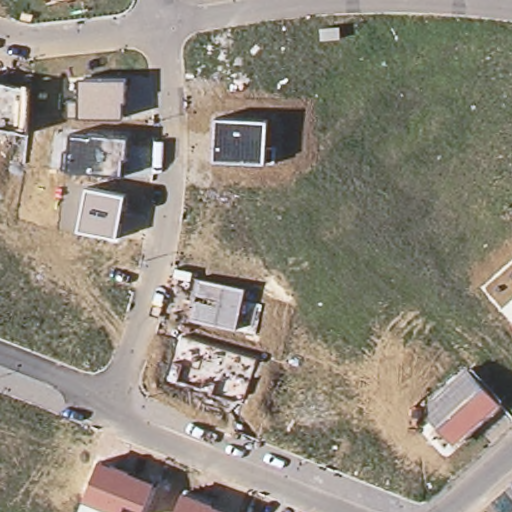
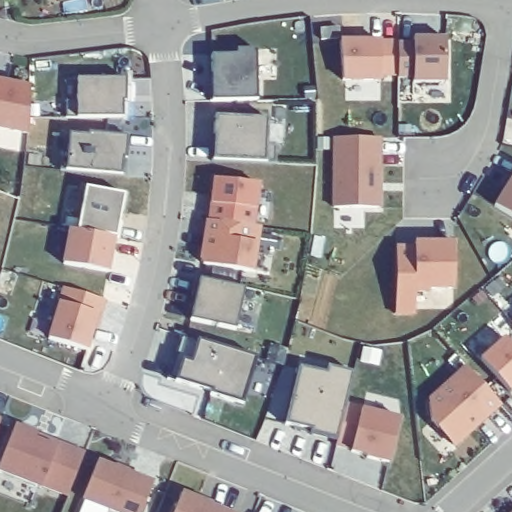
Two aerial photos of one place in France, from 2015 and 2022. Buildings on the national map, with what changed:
new [(412,82),(412,79),(380,77),(380,82),(342,82),(340,39),(380,41),(399,42),(414,44),(414,38),(445,39),(445,83),(412,82)]
new [(216,51),(230,52),(232,44),(252,45),(252,97),(215,97),(216,51)]
unchanged [(127,79),(126,102),(122,102),(122,116),(78,117),(78,78),(127,79)]
unchanged [(29,135),(0,129),(0,81),(29,86),(29,135)]
unchanged [(268,119),(267,143),(275,144),(274,161),(214,160),(215,117),(268,119)]
unchanged [(129,137),(128,159),(122,159),(120,174),(67,169),(69,133),(129,137)]
new [(334,207),(335,138),(380,139),(380,209),(334,207)]
new [(484,202),(510,163),(512,165),(512,224),(484,202)]
new [(201,261),(199,256),(205,219),(208,220),(210,203),(213,178),(259,183),(255,209),(255,226),(260,227),(258,244),(254,273),(201,261)]
new [(64,262),(69,228),(77,230),(85,187),(124,194),(109,274),(64,262)]
new [(395,317),(396,247),(415,248),(415,242),(452,242),(452,291),(429,291),(429,294),(415,295),(415,317),(395,317)]
unchanged [(246,289),(237,329),(190,318),(199,277),(246,289)]
new [(47,337),(59,302),(63,287),(106,300),(97,329),(94,327),(87,352),(47,337)]
unchanged [(510,325),(512,324),(512,327),(510,325)]
unchanged [(257,356),(245,397),(230,397),(165,376),(180,330),(257,356)]
new [(480,359),(505,337),(512,346),(512,393),(480,359)]
unchanged [(504,403),(457,447),(430,417),(430,397),(469,363),(504,403)]
new [(365,457),(365,454),(350,451),(335,445),(337,440),(307,434),(309,428),(286,423),(300,368),(327,376),(329,367),(352,373),(345,403),(362,408),(400,417),(387,465),(365,457)]
new [(40,484),(40,487),(0,470),(0,464),(14,425),(37,434),(36,438),(55,445),(56,441),(85,453),(67,496),(40,484)]
unchanged [(154,480),(143,512),(109,512),(82,502),(97,458),(154,480)]
unchanged [(238,511),(238,512),(174,512),(182,492),(238,511)]

